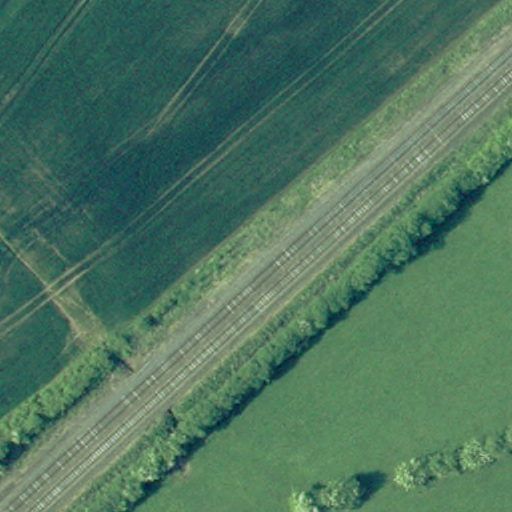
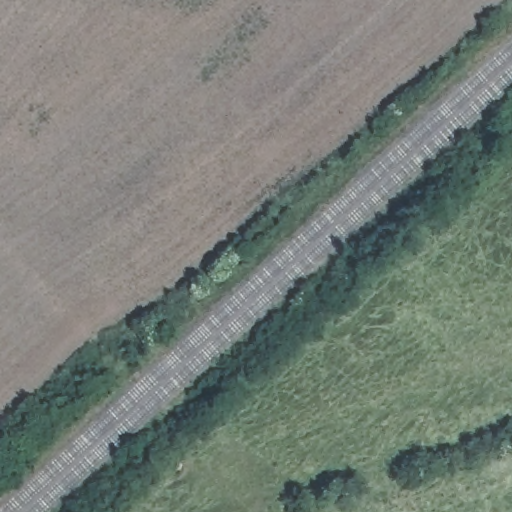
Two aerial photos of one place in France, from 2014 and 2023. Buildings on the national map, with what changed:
[]

